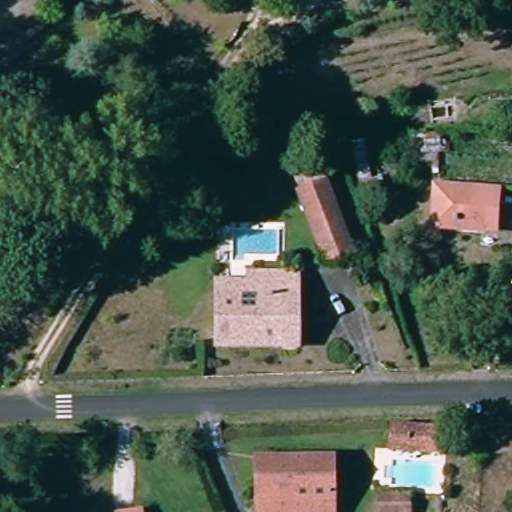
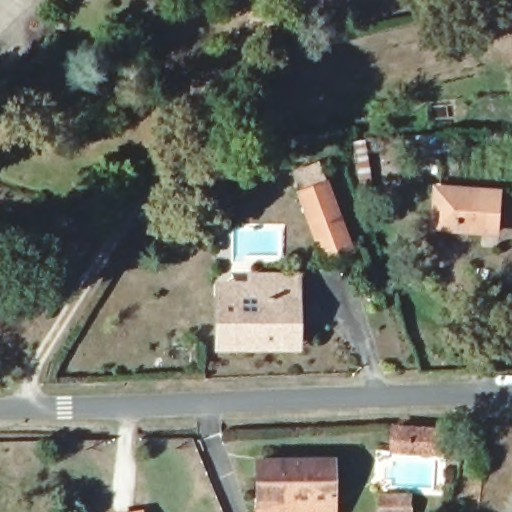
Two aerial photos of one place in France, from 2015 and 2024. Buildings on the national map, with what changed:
unchanged [(366,137),(375,189),(362,192),(352,141),(366,137)]
unchanged [(365,257),(341,267),(303,179),(327,169),(365,257)]
unchanged [(506,189),(505,227),(438,225),(439,186),(506,189)]
unchanged [(209,344),(216,288),(256,292),(258,264),(315,270),(311,302),(283,298),(277,350),(209,344)]
unchanged [(303,352),(277,350),(283,298),(311,302),(303,352)]
unchanged [(442,447),(392,447),(392,423),(442,423),(442,447)]
unchanged [(261,452),(337,451),(338,495),(260,495),(261,452)]
unchanged [(411,492),(411,512),(377,512),(377,492),(411,492)]
unchanged [(338,495),(338,512),(260,512),(260,495),(338,495)]

